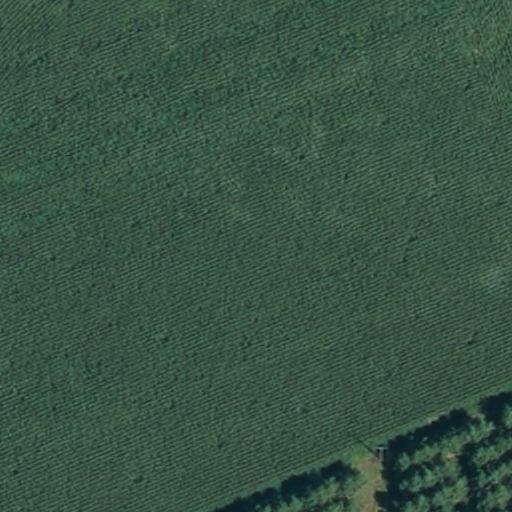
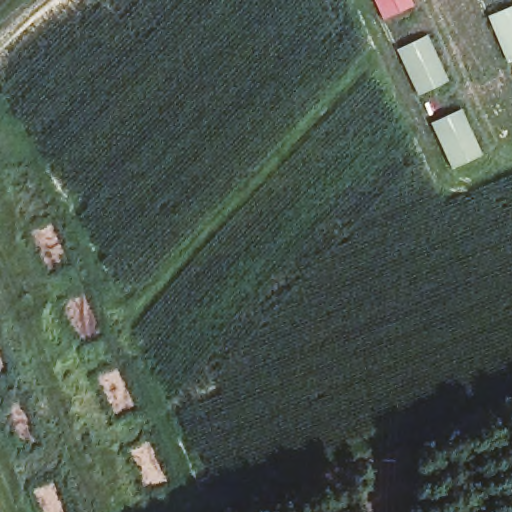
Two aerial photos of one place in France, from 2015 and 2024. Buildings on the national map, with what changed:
new [(411,0),(414,8),(384,23),(373,0),(411,0)]
new [(502,57),(483,12),(507,2),(512,11),(512,53),(502,57)]
new [(449,82),(417,97),(400,60),(433,45),(449,82)]
new [(434,132),(465,118),(483,155),(451,170),(434,132)]

